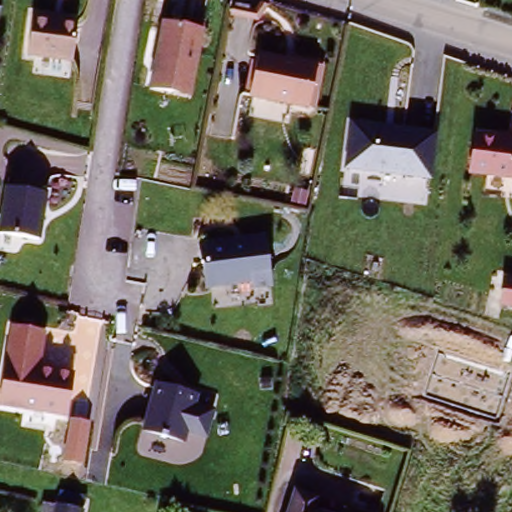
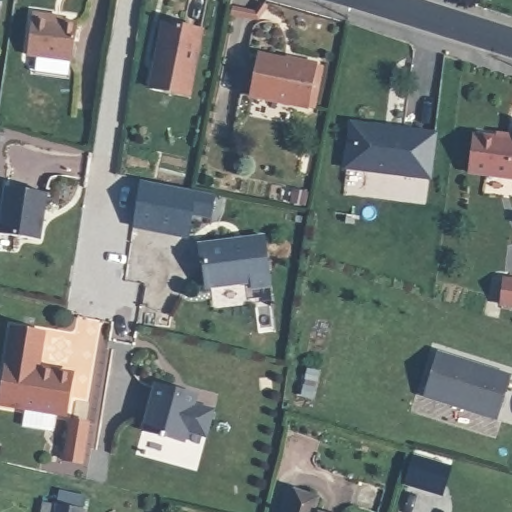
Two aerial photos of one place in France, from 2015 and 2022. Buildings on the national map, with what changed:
unchanged [(73,62),(28,55),(35,14),(51,16),(64,18),(64,22),(80,25),(73,62)]
unchanged [(166,20),(206,27),(193,94),(153,86),(166,20)]
unchanged [(287,56),(286,58),(295,60),(296,57),(318,62),(309,105),(251,91),(259,50),(287,56)]
unchanged [(350,121),(436,134),(430,179),(344,166),(350,121)]
unchanged [(512,133),(512,180),(466,174),(471,135),(511,140),(512,133)]
new [(214,219),(194,214),(189,238),(136,226),(143,182),(219,198),(214,219)]
unchanged [(1,185),(41,190),(34,237),(0,233),(0,196),(1,185)]
unchanged [(202,265),(201,265),(198,246),(263,239),(269,288),(251,290),(250,282),(210,288),(204,285),(202,265)]
unchanged [(506,277),(512,278),(512,304),(503,303),(506,277)]
unchanged [(60,415),(0,403),(0,370),(8,325),(40,330),(33,366),(68,373),(60,415)]
new [(512,375),(499,420),(423,397),(438,351),(512,375)]
unchanged [(205,432),(186,426),(183,436),(166,431),(166,435),(161,433),(161,430),(145,425),(158,382),(196,393),(193,403),(213,409),(205,432)]
unchanged [(92,422),(82,465),(60,460),(69,418),(92,422)]
unchanged [(295,495),(318,502),(315,512),(290,512),(295,495)]
unchanged [(48,505),(62,510),(73,512),(46,512),(48,505)]

